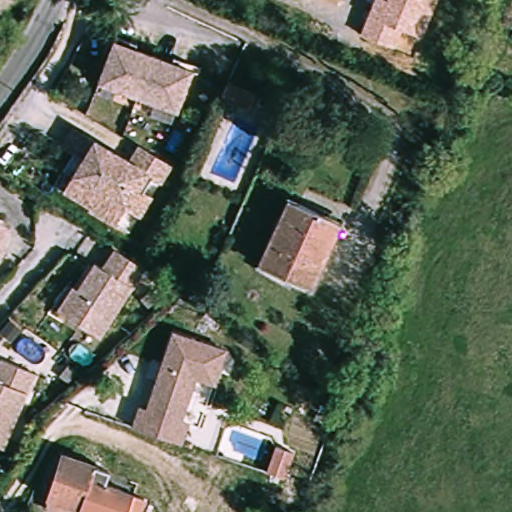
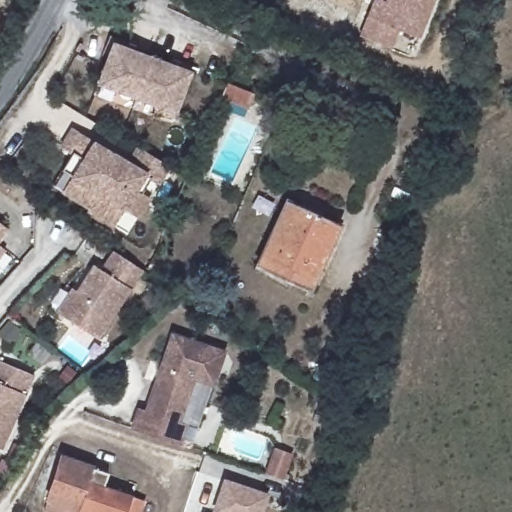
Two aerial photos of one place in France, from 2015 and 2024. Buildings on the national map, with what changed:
unchanged [(438,0),(424,37),(397,29),(392,46),(362,34),(374,0),(383,0),(386,1),(387,0),(438,0)]
unchanged [(189,69),(172,109),(95,76),(112,36),(189,69)]
unchanged [(254,94),(247,109),(220,97),(226,81),(254,94)]
unchanged [(106,223),(80,207),(82,205),(55,189),(75,155),(53,141),(65,123),(122,159),(132,141),(164,162),(152,181),(144,176),(134,191),(143,197),(132,214),(117,205),(106,223)]
unchanged [(429,161),(425,170),(404,161),(408,152),(429,161)]
unchanged [(276,220),(285,199),(322,215),(340,224),(332,240),(310,290),(263,269),(255,265),(276,220)]
unchanged [(8,229),(0,240),(0,223),(8,229)]
unchanged [(5,249),(0,256),(0,246),(5,249)]
unchanged [(70,288),(75,292),(93,264),(101,269),(113,250),(143,269),(98,339),(64,317),(55,312),(70,288)]
unchanged [(132,428),(139,407),(147,409),(173,330),(226,349),(215,383),(196,377),(181,422),(188,424),(181,444),(132,428)]
unchanged [(34,374),(2,449),(0,449),(0,360),(34,374)]
unchanged [(268,474),(277,448),(294,453),(285,479),(268,474)]
unchanged [(98,482),(139,495),(133,512),(95,512),(75,505),(72,512),(62,512),(39,504),(55,451),(103,468),(98,482)]
new [(225,481),(267,495),(262,512),(214,512),(225,481)]

